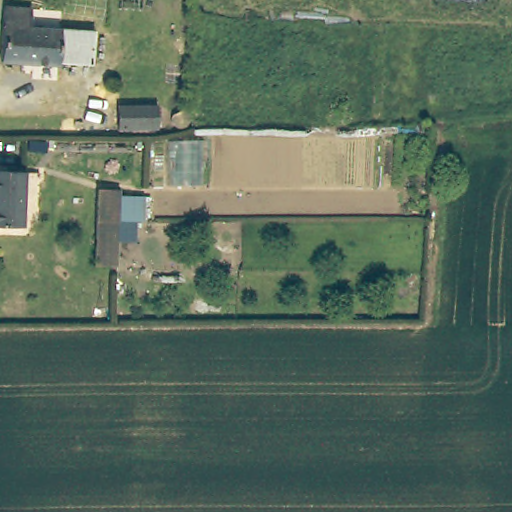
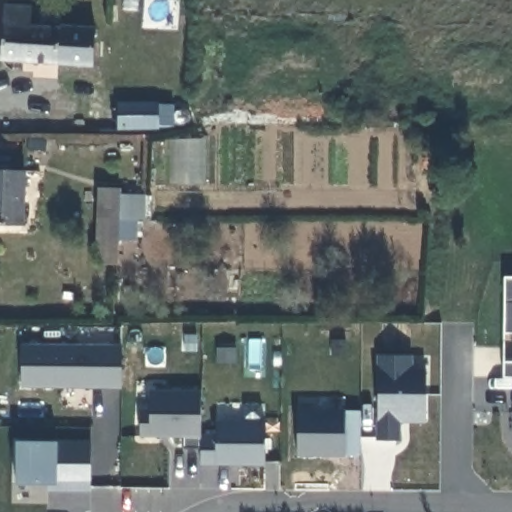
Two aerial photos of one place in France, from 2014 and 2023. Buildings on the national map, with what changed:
unchanged [(0,56),(0,41),(1,26),(3,2),(28,3),(28,24),(56,26),(55,60),(0,56)]
unchanged [(95,27),(93,67),(0,61),(0,56),(55,60),(56,26),(95,27)]
unchanged [(156,106),(157,130),(116,129),(115,105),(156,106)]
unchanged [(27,167),(26,224),(0,223),(0,167),(27,167)]
unchanged [(95,187),(117,187),(117,195),(142,195),(142,220),(117,220),(116,258),(94,258),(95,187)]
new [(504,277),(512,277),(512,333),(502,332),(504,277)]
new [(502,332),(512,333),(512,378),(503,377),(502,332)]
new [(121,346),(121,388),(19,387),(19,344),(121,346)]
new [(411,355),(411,370),(425,370),(424,423),(400,422),(399,441),(374,441),(376,355),(411,355)]
new [(264,467),(200,466),(200,449),(184,448),(185,438),(139,438),(139,409),(148,408),(149,391),(202,391),(201,434),(216,435),(215,422),(264,422),(264,467)]
new [(359,457),(297,457),(297,410),(360,412),(359,457)]
new [(91,492),(48,492),(48,486),(15,485),(16,442),(59,443),(91,442),(91,492)]

